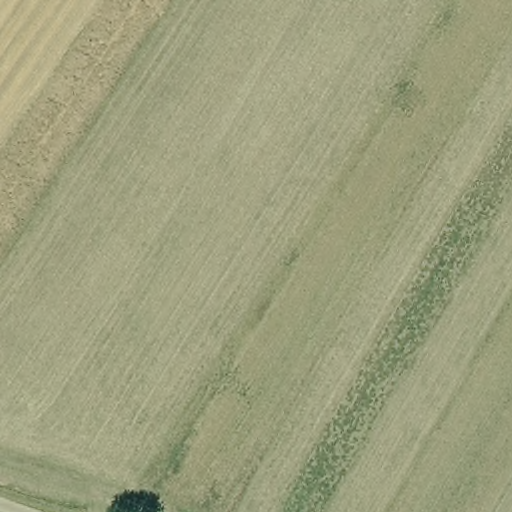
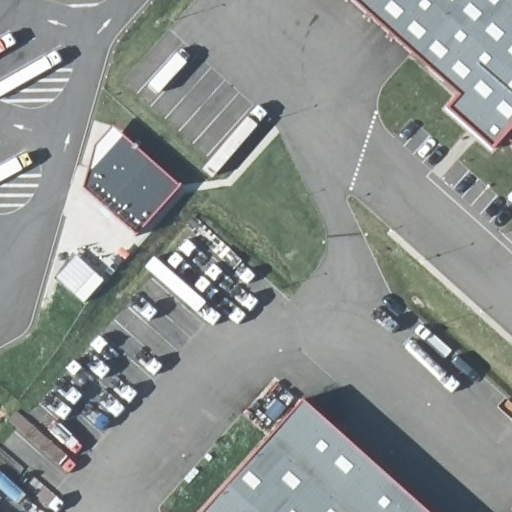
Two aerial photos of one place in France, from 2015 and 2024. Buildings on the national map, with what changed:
new [(504,136),(491,147),(445,107),(456,97),(348,0),(512,0),(512,143),(504,136)]
new [(179,188),(136,236),(81,188),(95,147),(114,127),(179,188)]
new [(344,438),(427,512),(200,512),(301,398),(344,438)]

